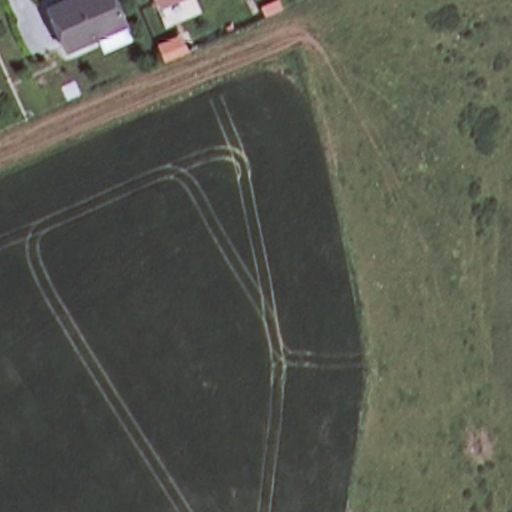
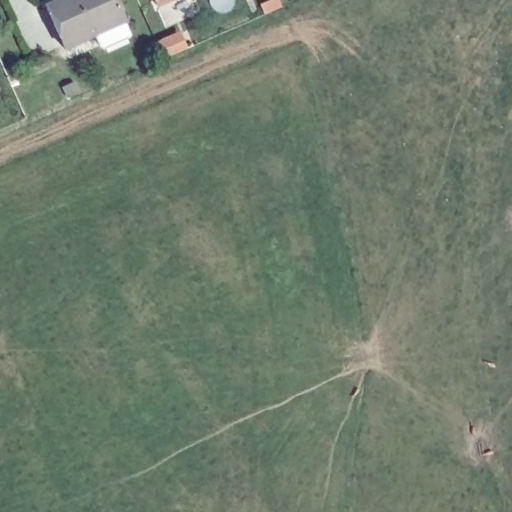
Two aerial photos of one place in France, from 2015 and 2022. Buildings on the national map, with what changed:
unchanged [(97,27),(67,41),(49,0),(122,0),(128,14),(125,15),(132,29),(104,41),(97,27)]
unchanged [(154,0),(163,0),(155,3),(154,0)]
unchanged [(165,59),(158,44),(177,35),(184,50),(165,59)]

